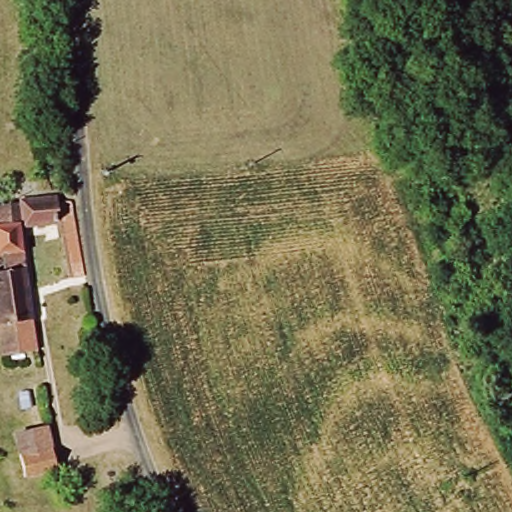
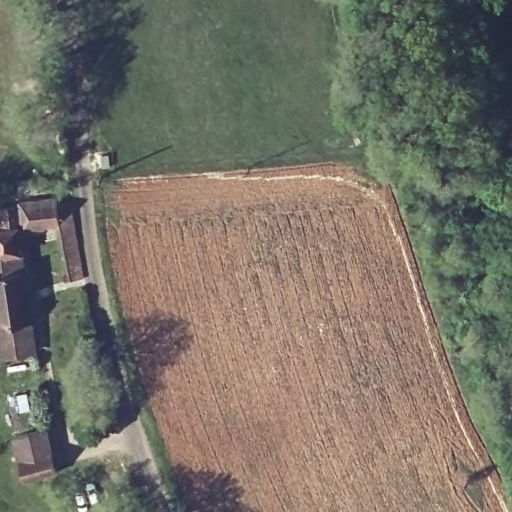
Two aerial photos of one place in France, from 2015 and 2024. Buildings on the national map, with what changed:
unchanged [(61,203),(78,202),(84,224),(95,279),(77,282),(63,221),(18,230),(39,349),(0,356),(0,199),(57,190),(61,203)]
unchanged [(46,424),(59,465),(30,479),(15,433),(46,424)]

